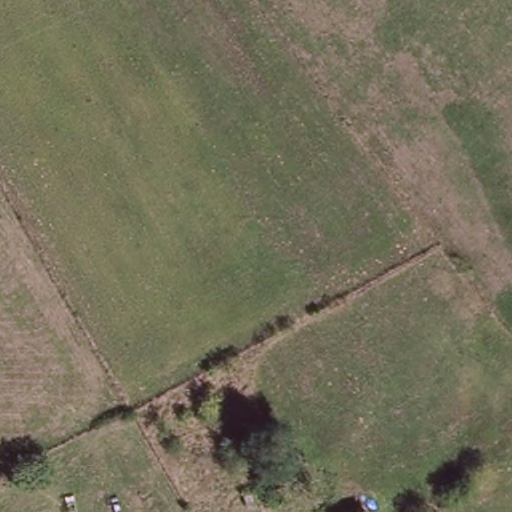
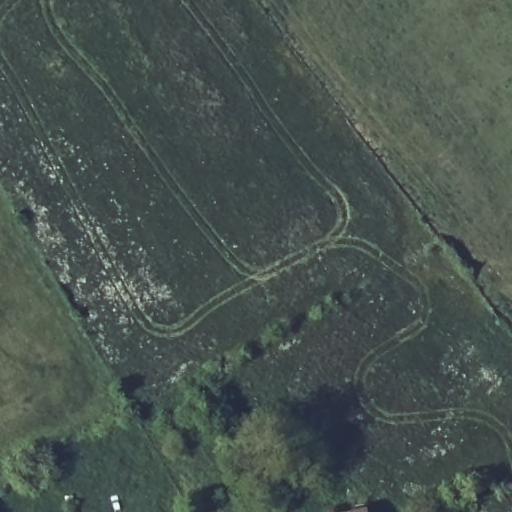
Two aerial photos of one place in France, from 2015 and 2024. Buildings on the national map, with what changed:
[]

